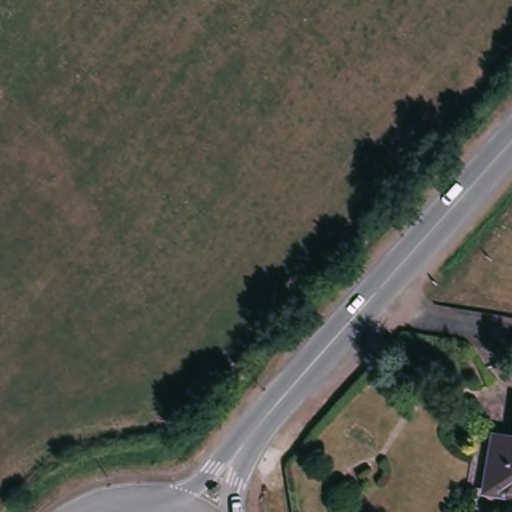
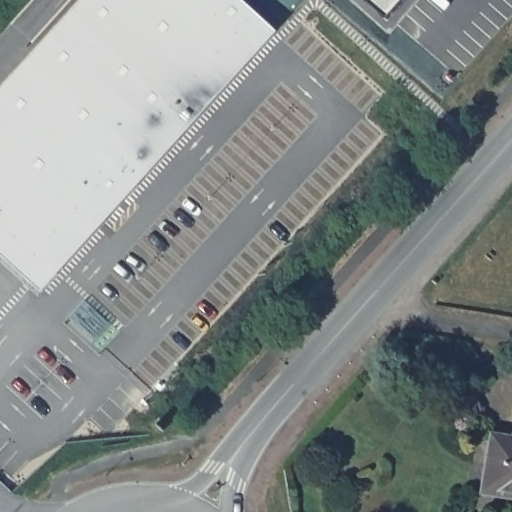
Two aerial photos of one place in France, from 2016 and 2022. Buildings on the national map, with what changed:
new [(274,28),(38,290),(0,255),(0,86),(78,0),(243,0),(274,28)]
new [(387,18),(367,0),(402,0),(387,18)]
new [(86,301),(111,323),(95,340),(70,318),(86,301)]
unchanged [(486,489),(495,432),(499,398),(512,400),(512,492),(486,489)]

